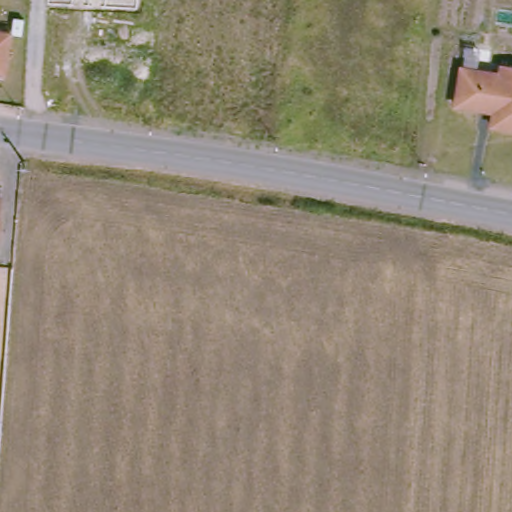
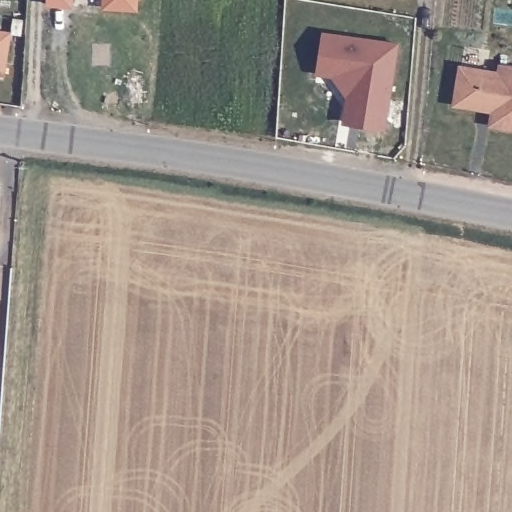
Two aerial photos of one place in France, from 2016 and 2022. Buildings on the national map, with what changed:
unchanged [(137,14),(49,8),(50,0),(138,0),(137,14)]
new [(343,123),(346,96),(332,77),(317,76),(322,31),(398,42),(386,128),(343,123)]
unchanged [(6,76),(0,75),(0,32),(12,34),(6,76)]
unchanged [(499,73),(500,65),(512,66),(512,128),(492,126),(493,111),(455,107),(460,69),(499,73)]
unchanged [(0,198),(3,198),(0,224),(0,198)]

